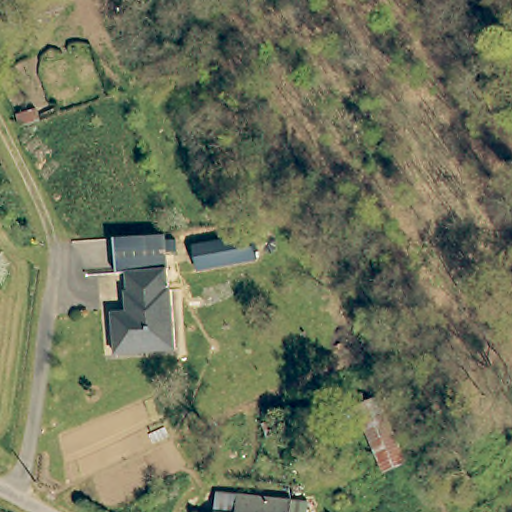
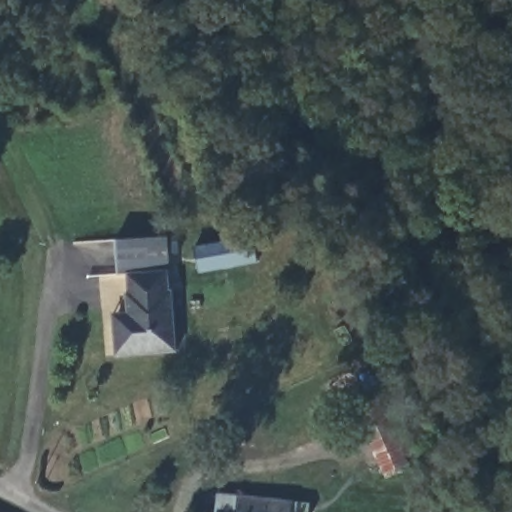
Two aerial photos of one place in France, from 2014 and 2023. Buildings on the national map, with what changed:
unchanged [(11,113),(34,107),(36,116),(14,123),(11,113)]
unchanged [(253,236),(258,260),(200,271),(195,247),(253,236)]
unchanged [(133,312),(130,295),(134,294),(132,273),(116,275),(112,241),(161,237),(167,292),(177,291),(182,351),(120,358),(117,324),(115,314),(133,312)]
unchanged [(353,406),(376,397),(404,461),(382,471),(353,406)]
unchanged [(219,492),(312,500),(310,512),(216,512),(219,492)]

